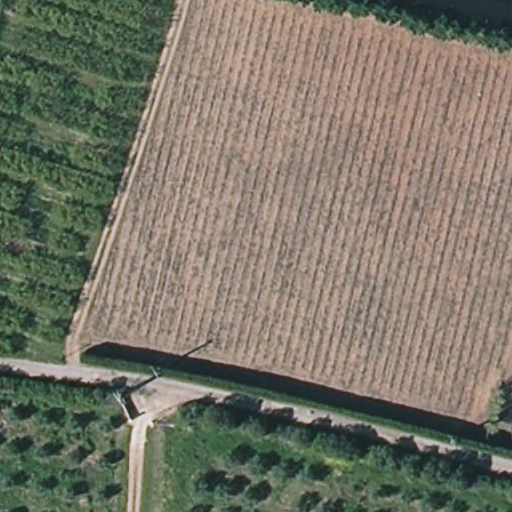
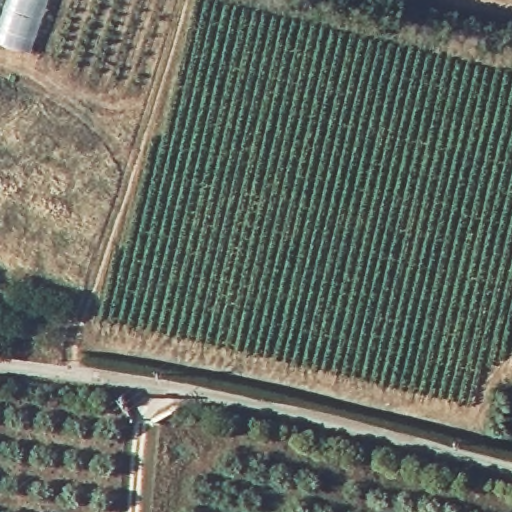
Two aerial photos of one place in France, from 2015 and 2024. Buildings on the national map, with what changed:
new [(0,43),(0,0),(49,0),(31,54),(0,43)]

